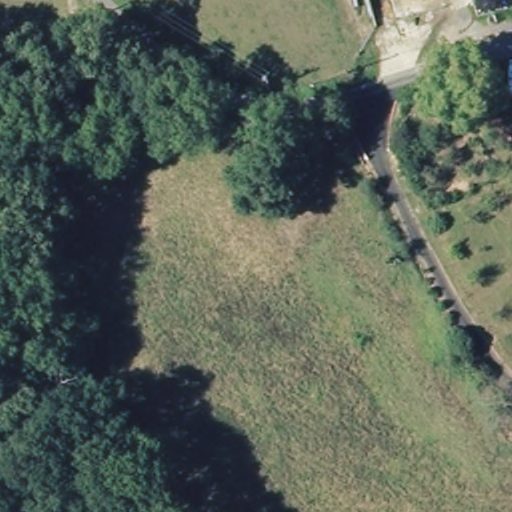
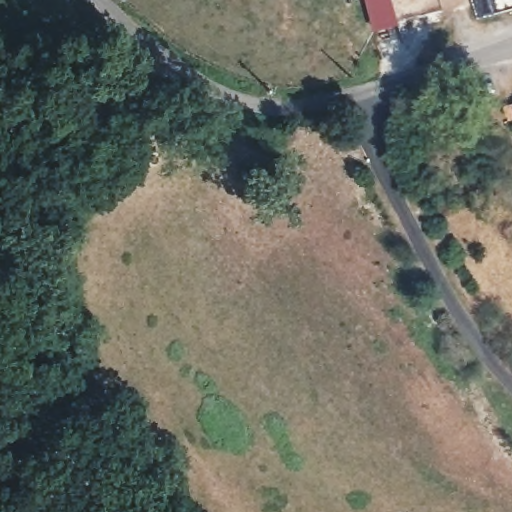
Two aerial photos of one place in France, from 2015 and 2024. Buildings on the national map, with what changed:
new [(400,26),(372,33),(364,0),(393,0),(400,26)]

